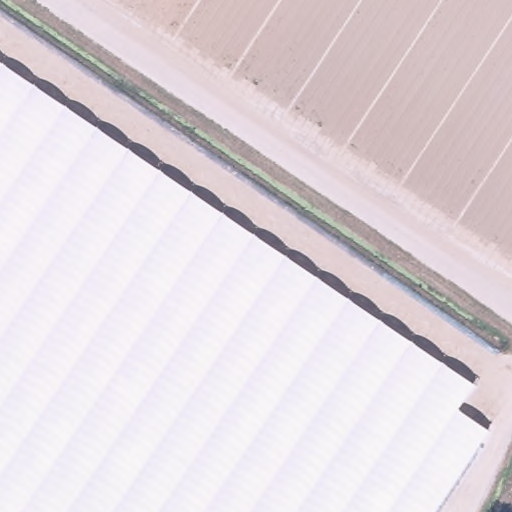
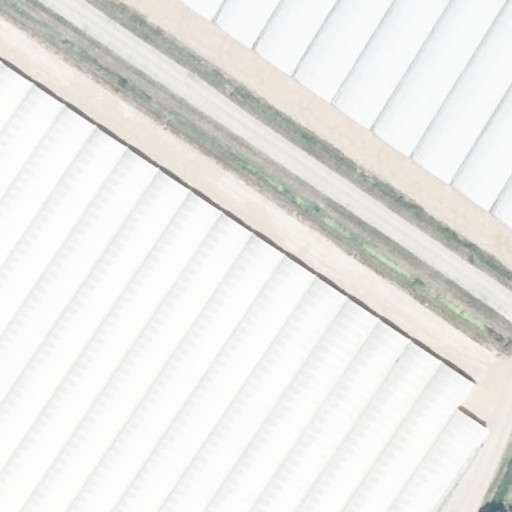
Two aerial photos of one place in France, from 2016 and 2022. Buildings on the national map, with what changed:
new [(179,0),(512,0),(512,228),(179,0)]
unchanged [(464,418),(495,440),(446,512),(0,512),(0,70),(478,393),(464,418)]

